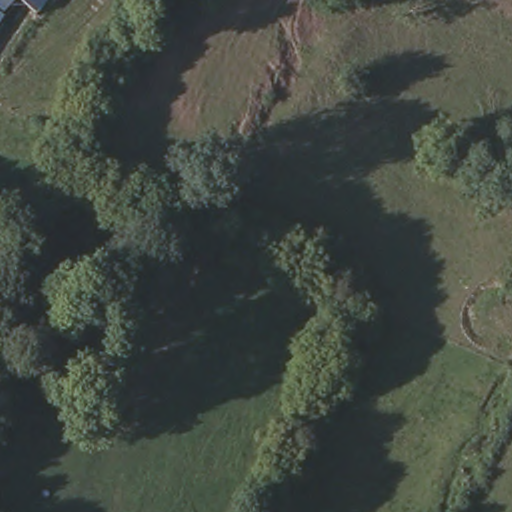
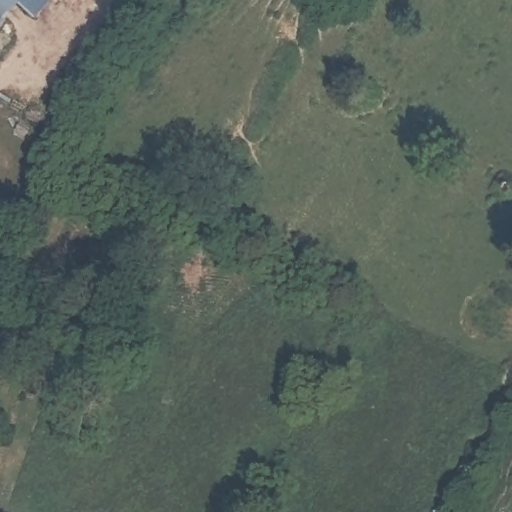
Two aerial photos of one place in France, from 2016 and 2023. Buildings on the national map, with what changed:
unchanged [(0,30),(0,12),(1,10),(0,9),(0,0),(20,0),(8,17),(0,30)]
unchanged [(21,0),(47,0),(34,14),(21,0)]
unchanged [(1,10),(0,12),(0,9),(1,10)]

